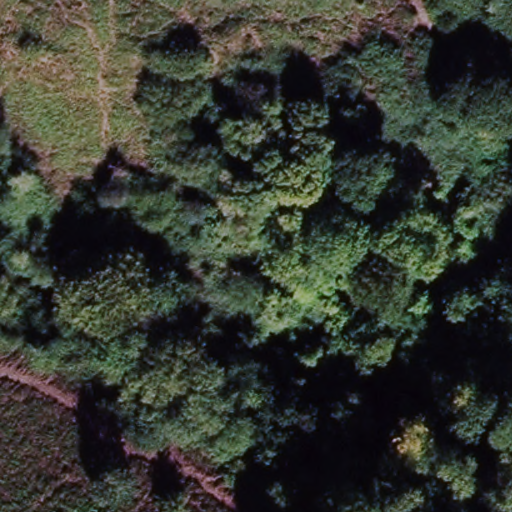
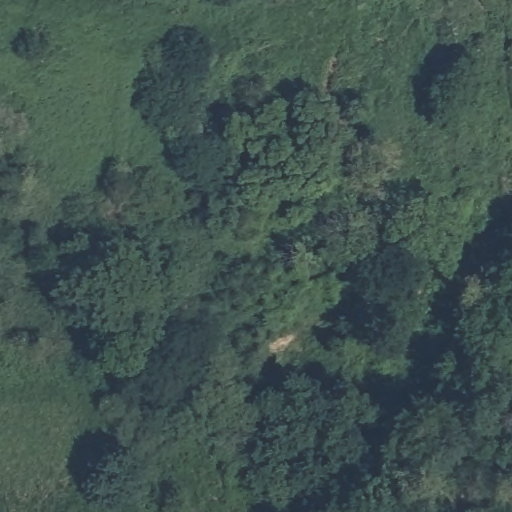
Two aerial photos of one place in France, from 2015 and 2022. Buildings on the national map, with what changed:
[]

